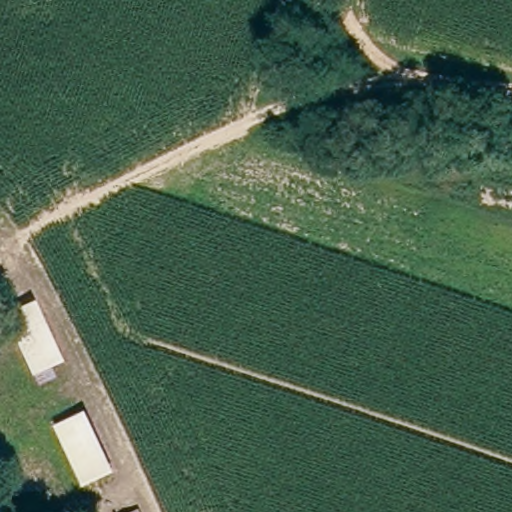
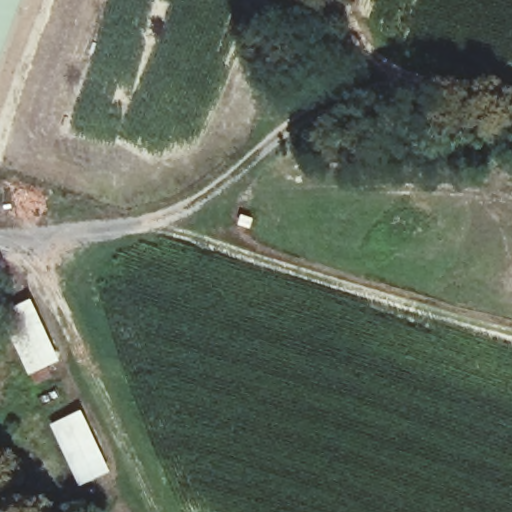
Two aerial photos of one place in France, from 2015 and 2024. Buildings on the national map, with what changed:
new [(0,0),(22,0),(0,60),(0,0)]
unchanged [(62,359),(31,370),(4,310),(32,298),(62,359)]
unchanged [(85,407),(114,471),(81,484),(53,423),(85,407)]

